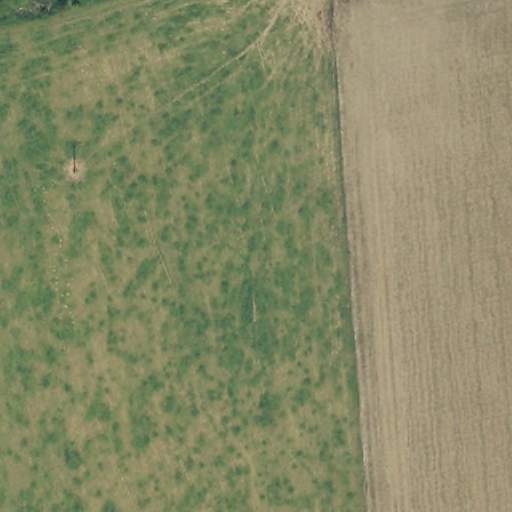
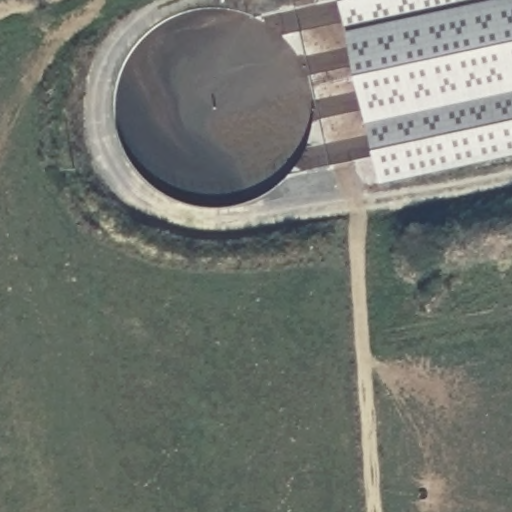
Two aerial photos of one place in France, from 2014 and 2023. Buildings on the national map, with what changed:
new [(381,182),(341,0),(512,0),(512,154),(381,182)]

